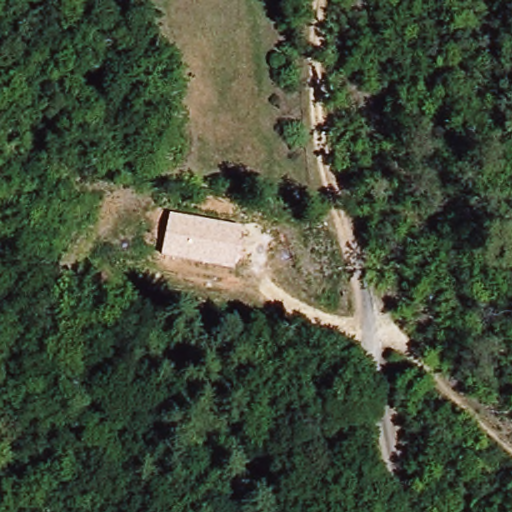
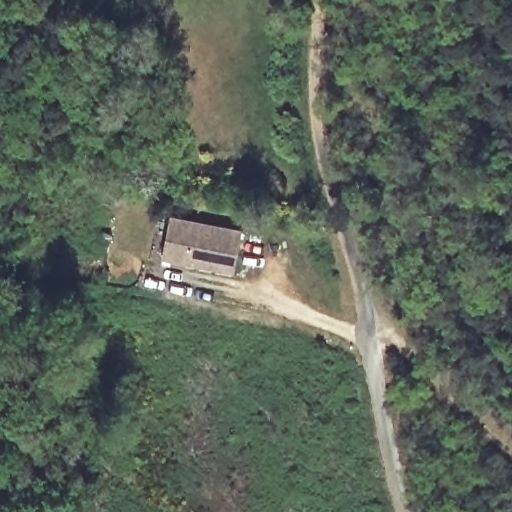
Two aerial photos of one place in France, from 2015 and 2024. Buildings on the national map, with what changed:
unchanged [(170,215),(242,231),(234,271),(162,256),(170,215)]

